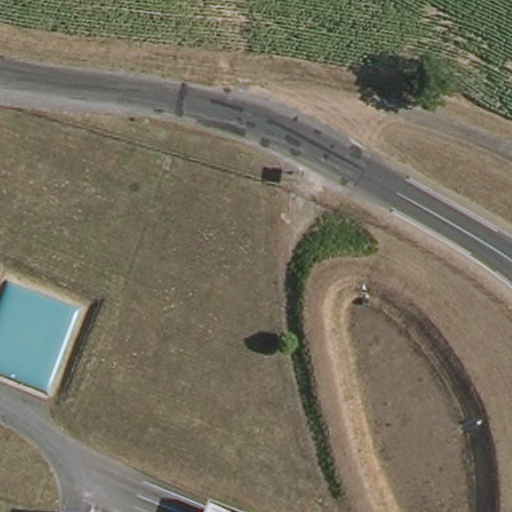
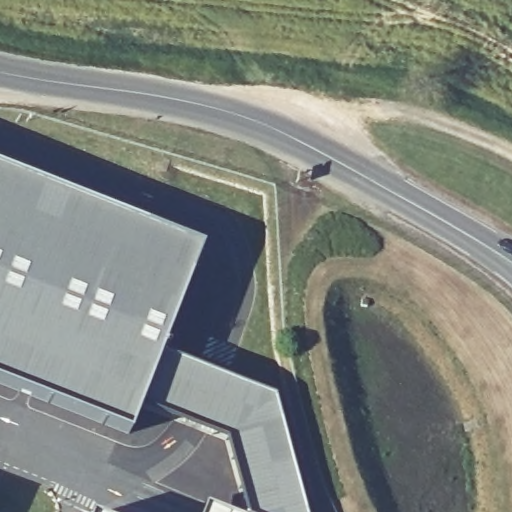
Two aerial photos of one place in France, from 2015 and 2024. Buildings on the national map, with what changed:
new [(202,245),(160,351),(273,396),(302,512),(256,512),(246,509),(225,440),(140,405),(130,432),(0,382),(0,168),(202,245)]
unchanged [(256,512),(230,512),(234,504),(256,512)]
unchanged [(105,512),(93,512),(95,508),(105,512)]

